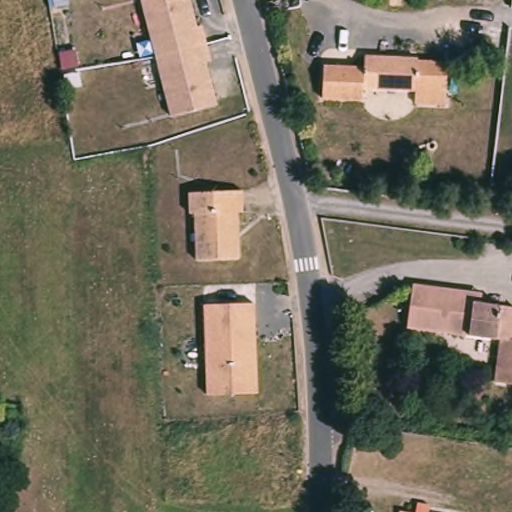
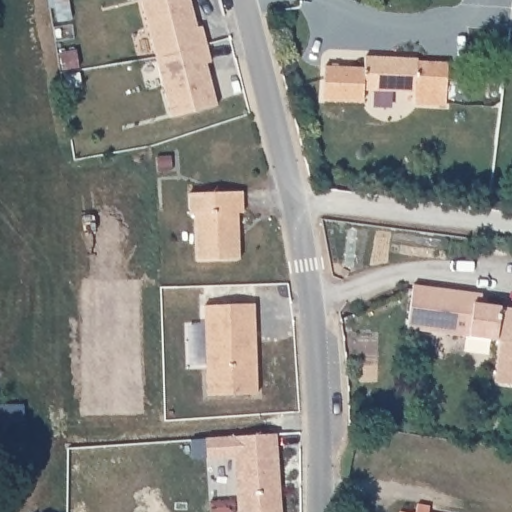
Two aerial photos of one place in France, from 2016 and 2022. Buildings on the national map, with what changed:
unchanged [(204,25),(209,42),(214,60),(209,61),(220,103),(174,116),(143,0),(192,0),(199,26),(204,25)]
unchanged [(364,70),(365,57),(415,60),(415,61),(446,63),(444,106),(414,105),(415,91),(362,90),(362,102),(321,100),(323,68),(364,70)]
unchanged [(238,194),(239,215),(233,215),(235,262),(192,263),(191,217),(186,217),(185,196),(238,194)]
unchanged [(474,293),(482,294),(481,305),(512,309),(512,337),(512,341),(512,343),(501,341),(406,329),(413,285),(474,293)]
unchanged [(200,309),(251,308),(253,398),(203,399),(200,309)]
unchanged [(512,341),(512,384),(496,382),(501,341),(512,343),(512,341)]
unchanged [(2,405),(2,420),(0,420),(0,404),(2,405)]
new [(278,466),(279,492),(280,512),(238,512),(235,456),(207,458),(206,439),(275,434),(278,466)]
unchanged [(417,508),(430,511),(430,512),(416,512),(417,508)]

